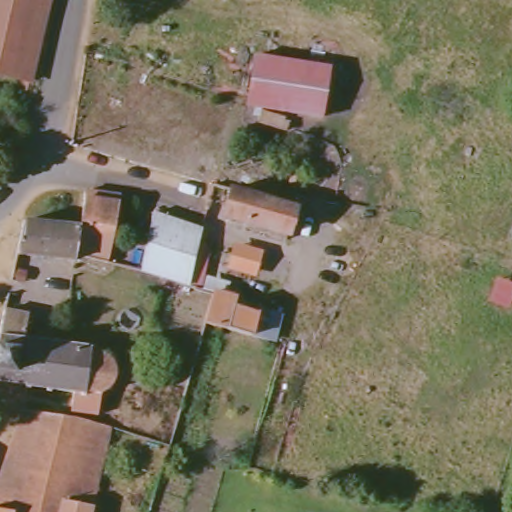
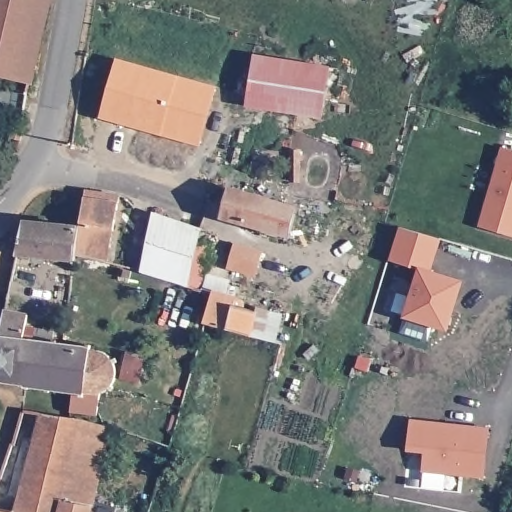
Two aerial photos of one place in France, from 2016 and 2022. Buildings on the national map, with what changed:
unchanged [(31,82),(0,74),(0,0),(50,0),(31,82)]
unchanged [(251,54),(326,66),(318,117),(307,116),(243,106),(251,54)]
new [(129,125),(101,117),(116,64),(213,91),(203,127),(198,143),(129,125)]
unchanged [(258,112),(285,121),(283,131),(254,122),(258,112)]
new [(502,144),(512,147),(512,234),(478,224),(502,144)]
unchanged [(224,186),(294,205),(284,237),(216,219),(224,186)]
unchanged [(109,236),(103,267),(71,259),(75,232),(81,196),(115,200),(109,236)]
unchanged [(153,222),(151,220),(153,212),(199,228),(196,242),(207,245),(205,258),(208,258),(200,292),(186,288),(186,285),(142,272),(153,222)]
unchanged [(71,259),(70,266),(11,259),(18,227),(75,232),(71,259)]
new [(406,316),(419,270),(390,260),(399,227),(442,239),(432,271),(461,280),(447,328),(406,316)]
new [(238,242),(266,250),(261,273),(233,266),(238,242)]
unchanged [(273,342),(251,336),(206,323),(204,323),(213,296),(214,293),(251,304),(249,310),(258,312),(279,317),(273,342)]
unchanged [(49,332),(49,340),(52,340),(51,343),(58,343),(80,346),(81,342),(85,342),(86,347),(96,350),(102,353),(106,359),(111,358),(113,362),(109,363),(110,370),(110,380),(105,387),(107,390),(104,392),(101,390),(95,393),(92,415),(66,412),(69,394),(48,391),(48,393),(41,392),(42,390),(26,388),(25,391),(20,390),(21,386),(0,383),(0,311),(23,315),(19,339),(28,340),(29,330),(49,332)]
unchanged [(8,443),(18,411),(64,417),(105,427),(98,457),(89,499),(86,512),(0,512),(0,457),(5,442),(8,443)]
new [(423,472),(424,453),(408,452),(411,419),(489,427),(484,477),(423,472)]

